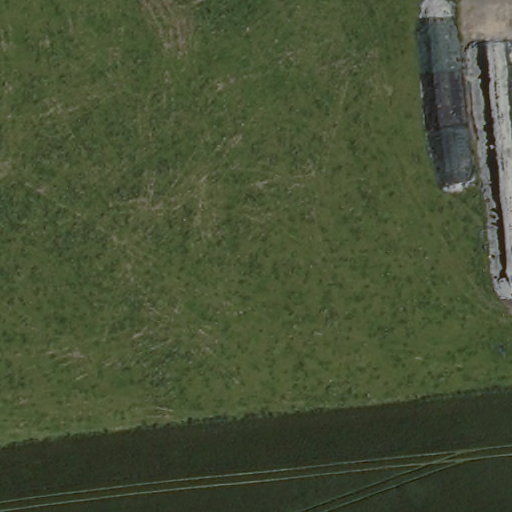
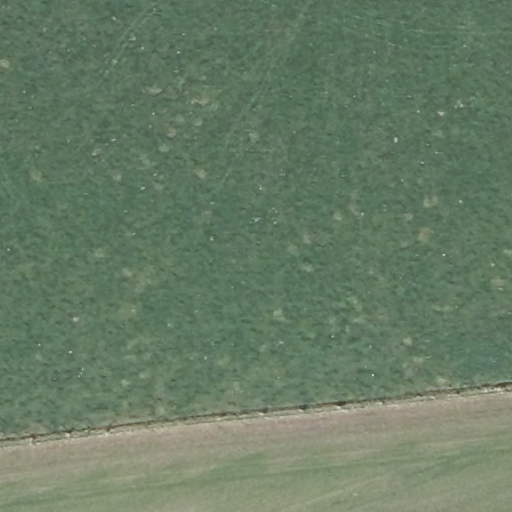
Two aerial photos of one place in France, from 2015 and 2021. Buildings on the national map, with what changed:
[]

